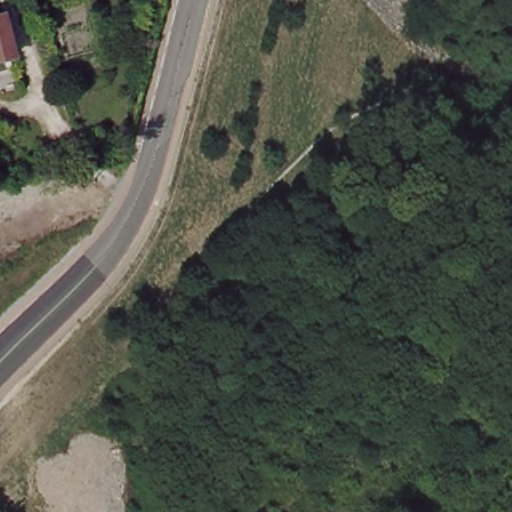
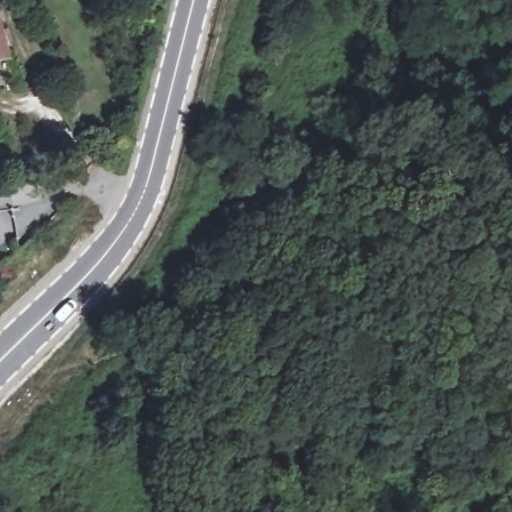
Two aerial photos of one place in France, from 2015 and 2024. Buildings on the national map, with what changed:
unchanged [(18,64),(0,69),(0,12),(7,11),(18,64)]

